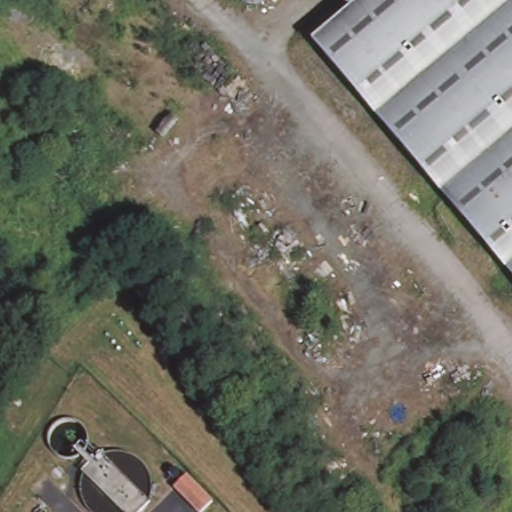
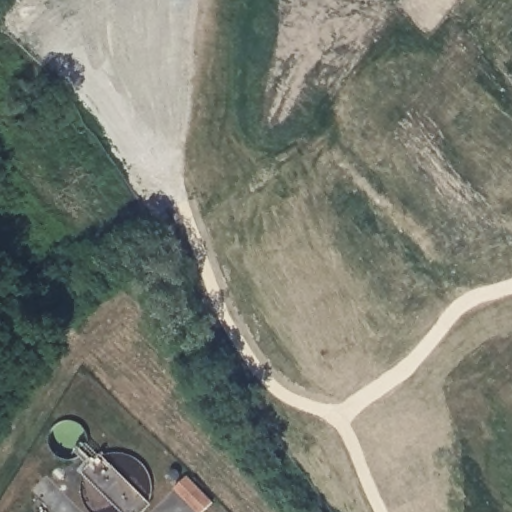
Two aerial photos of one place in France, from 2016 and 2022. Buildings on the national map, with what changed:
demolished [(301,18),(322,0),(512,0),(512,273),(301,18)]
unchanged [(179,471),(179,472),(180,472),(180,473),(180,474),(181,474),(181,475),(181,476),(180,476),(180,477),(180,478),(179,479),(178,479),(178,480),(177,480),(177,481),(176,481),(175,481),(174,481),(173,481),(172,481),(172,480),(171,480),(171,479),(170,479),(170,478),(169,478),(169,477),(169,476),(169,475),(169,474),(169,473),(169,472),(170,472),(170,471),(171,471),(171,470),(172,469),(173,469),(174,469),(175,469),(176,469),(177,469),(178,469),(178,470),(179,471)]
unchanged [(203,512),(196,512),(174,489),(188,475),(213,502),(203,512)]
unchanged [(42,509),(43,510),(44,511),(45,511),(45,512),(46,512),(35,512),(36,512),(36,511),(37,511),(38,510),(39,509),(40,509),(41,509),(42,509)]

